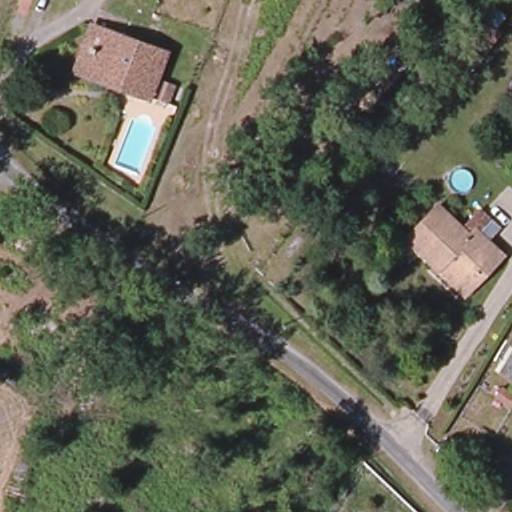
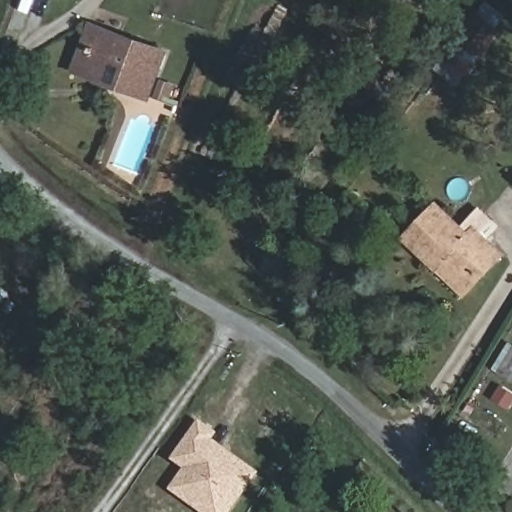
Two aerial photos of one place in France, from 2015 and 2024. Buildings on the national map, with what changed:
unchanged [(70,71),(91,21),(170,54),(150,104),(70,71)]
unchanged [(440,275),(407,244),(437,211),(445,203),(478,235),(505,261),(472,295),(467,301),(440,275)]
new [(169,490),(184,469),(170,459),(200,421),(218,434),(213,440),(260,473),(232,512),(200,512),(169,490)]

